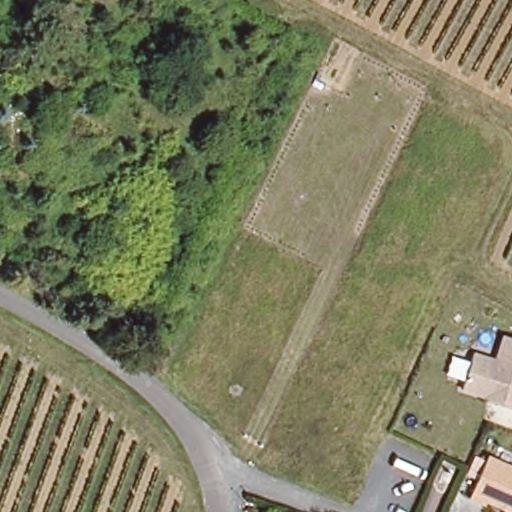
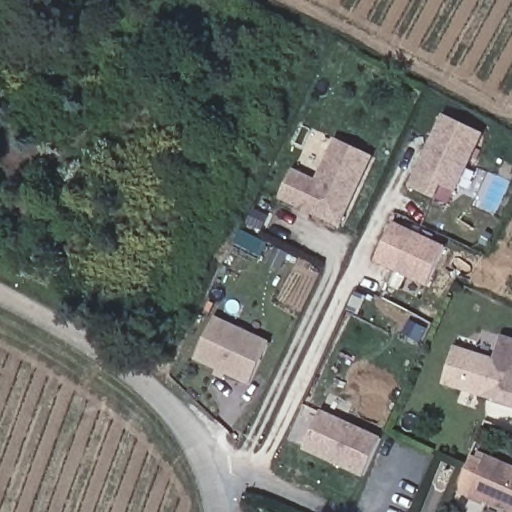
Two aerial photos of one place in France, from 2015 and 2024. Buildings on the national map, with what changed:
new [(456,191),(441,185),(435,199),(410,187),(445,115),(483,133),(456,191)]
new [(279,199),(292,170),(316,181),(335,140),(372,157),(340,227),(311,214),(308,219),(296,213),(298,208),(279,199)]
new [(375,261),(393,221),(445,246),(425,289),(375,261)]
new [(267,264),(272,255),(275,249),(287,255),(285,260),(280,270),(267,264)]
new [(250,386),(194,360),(214,318),(270,345),(250,386)]
unchanged [(470,353),(493,360),(501,335),(512,338),(512,405),(459,388),(470,353)]
new [(381,440),(363,477),(303,450),(320,412),(381,440)]
unchanged [(512,507),(490,497),(488,501),(472,495),(490,454),(512,464),(512,507)]

